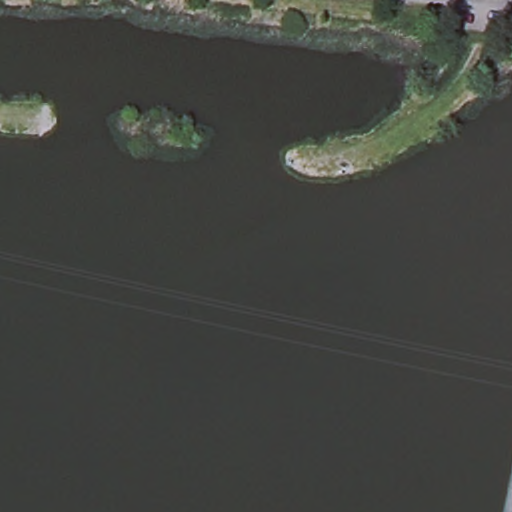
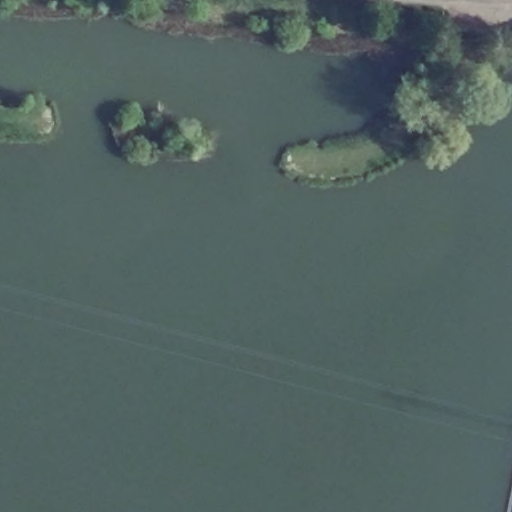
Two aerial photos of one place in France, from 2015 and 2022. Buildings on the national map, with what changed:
[]

